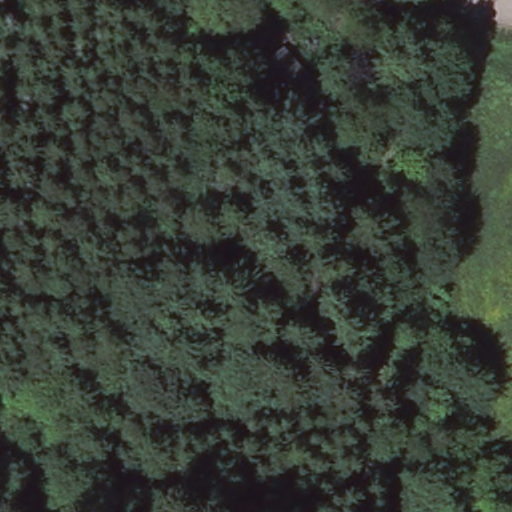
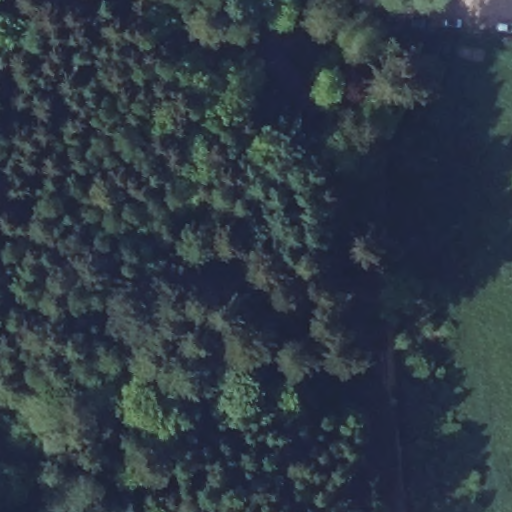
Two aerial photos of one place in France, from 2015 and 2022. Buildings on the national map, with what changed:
unchanged [(335,1),(350,18),(341,36),(320,14),(335,1)]
unchanged [(237,64),(225,83),(193,61),(205,43),(237,64)]
unchanged [(320,93),(293,116),(257,78),(285,55),(320,93)]

